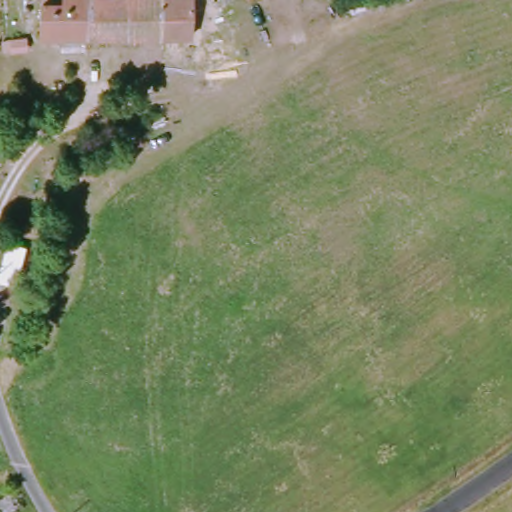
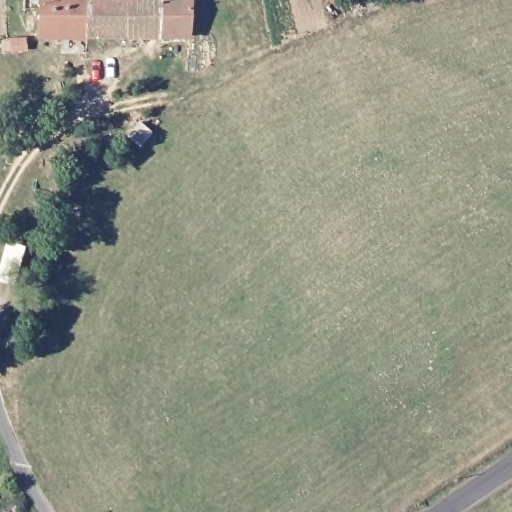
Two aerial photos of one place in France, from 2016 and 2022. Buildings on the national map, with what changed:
unchanged [(35,40),(35,0),(98,0),(98,41),(72,41),(35,40)]
unchanged [(98,0),(124,0),(124,41),(98,41),(98,0)]
unchanged [(124,0),(189,0),(188,41),(124,41),(124,0)]

